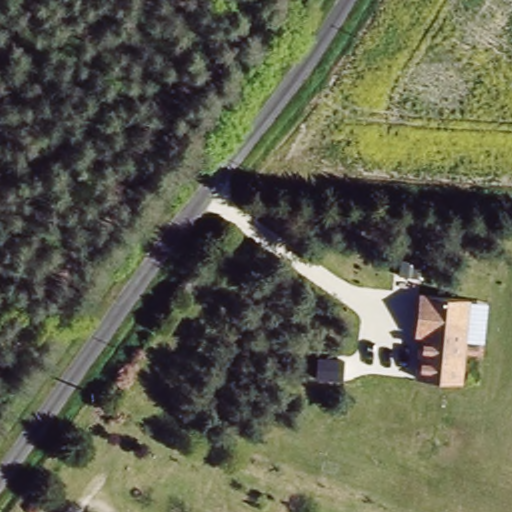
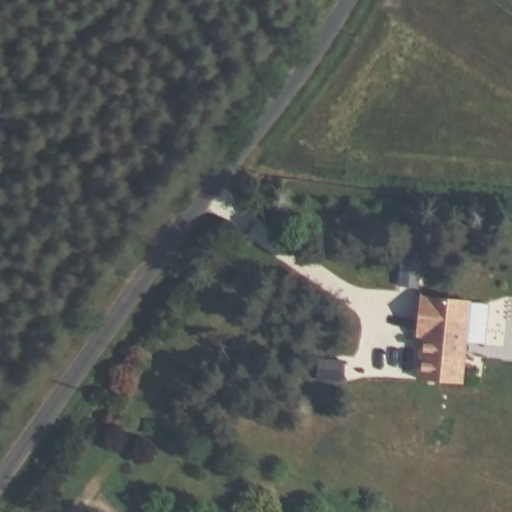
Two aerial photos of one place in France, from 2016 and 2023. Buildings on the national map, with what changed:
unchanged [(469,297),(461,383),(417,378),(422,334),(415,334),(418,294),(469,297)]

